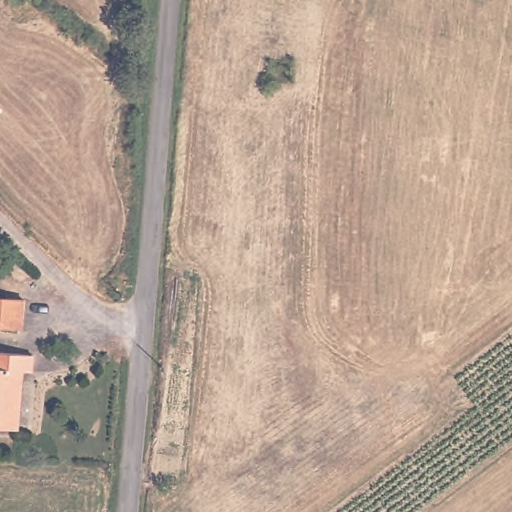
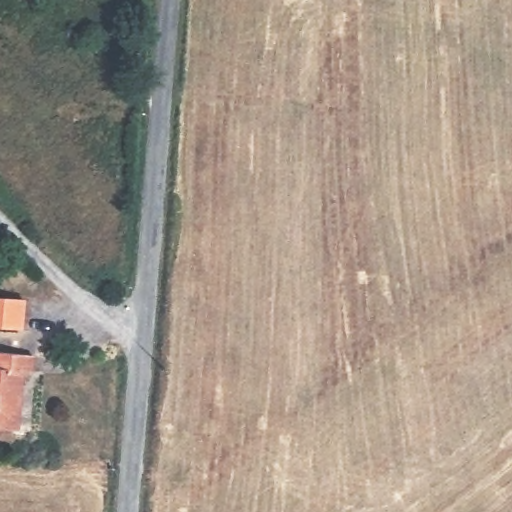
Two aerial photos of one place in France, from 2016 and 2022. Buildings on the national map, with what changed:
unchanged [(21,299),(19,326),(0,324),(0,294),(21,295),(21,299)]
unchanged [(22,368),(21,389),(18,389),(14,427),(0,426),(0,348),(33,351),(31,369),(22,368)]

